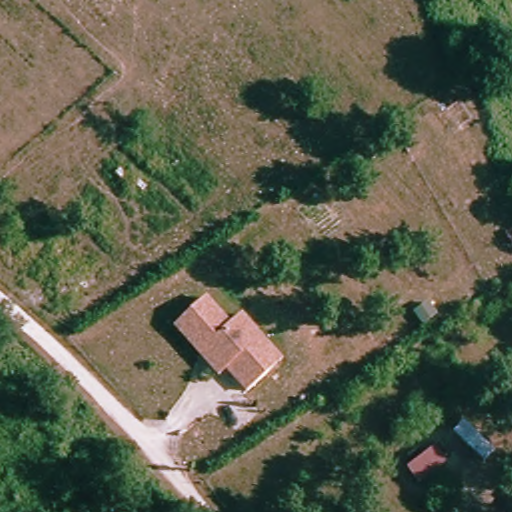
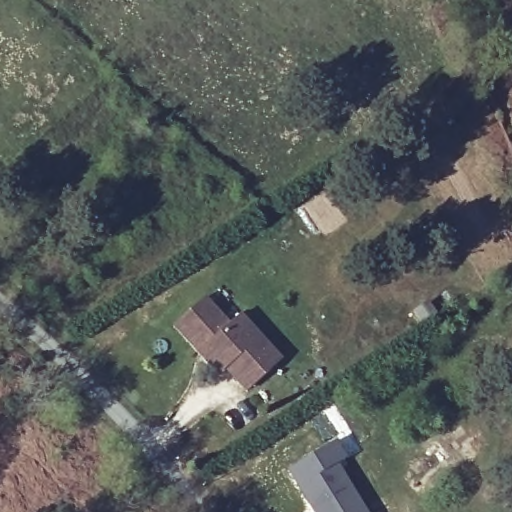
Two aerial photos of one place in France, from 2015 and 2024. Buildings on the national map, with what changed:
unchanged [(229,323),(240,314),(282,358),(247,389),(206,344),(199,352),(174,324),(204,297),(229,323)]
new [(334,443),(345,459),(335,465),(365,512),(311,512),(287,473),(334,443)]
demolished [(441,447),(452,463),(422,482),(410,468),(441,447)]

